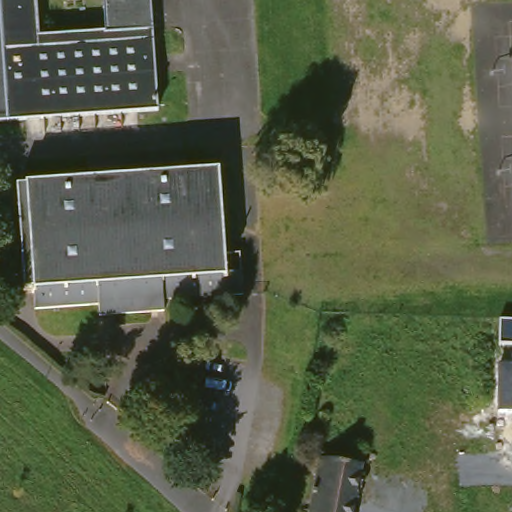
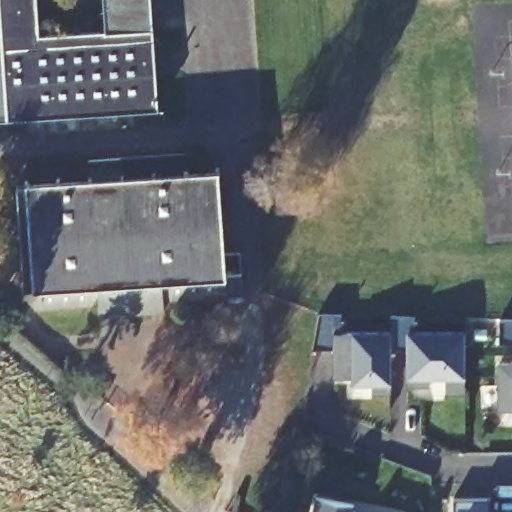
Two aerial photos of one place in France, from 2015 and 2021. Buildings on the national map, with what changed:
unchanged [(0,121),(0,0),(156,0),(163,111),(0,121)]
unchanged [(191,165),(193,184),(225,182),(231,282),(247,282),(248,306),(167,310),(167,322),(120,324),(103,325),(103,314),(39,318),(39,317),(38,297),(28,297),(22,196),(96,191),(95,171),(127,169),(191,165)]
new [(390,386),(390,395),(371,395),(371,387),(351,387),(351,379),(332,378),(333,349),(313,349),(320,317),(341,317),(341,334),(352,334),(390,334),(390,318),(413,319),(413,332),(464,333),(464,380),(464,393),(446,393),(446,381),(428,381),(428,388),(408,387),(408,381),(406,381),(407,350),(391,350),(390,386)]
unchanged [(496,411),(498,367),(512,367),(512,411),(496,411)]
unchanged [(328,451),(336,452),(334,460),(368,467),(361,512),(318,512),(328,451)]
demolished [(459,512),(431,506),(438,471),(468,477),(459,512)]
new [(454,502),(489,502),(489,512),(454,512),(454,502)]

